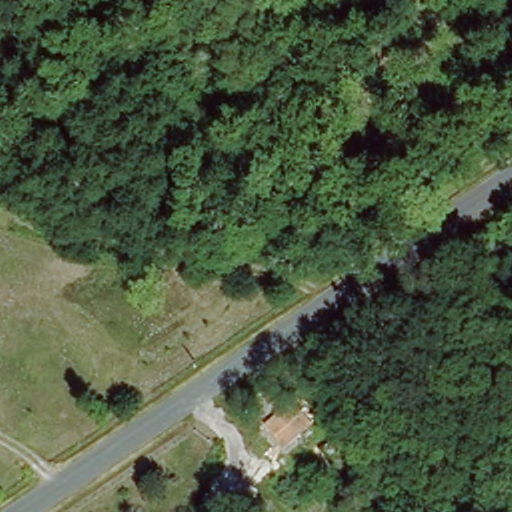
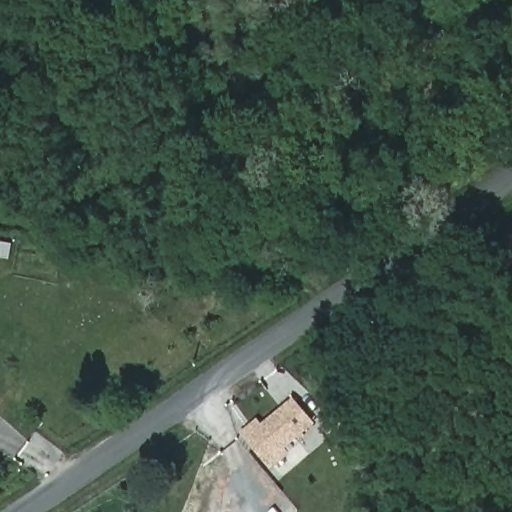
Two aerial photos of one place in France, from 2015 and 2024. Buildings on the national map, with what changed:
demolished [(293,400),(313,426),(284,448),(266,423),(293,400)]
new [(288,454),(268,468),(240,431),(256,420),(262,429),(269,425),(281,413),(292,402),(309,419),(296,431),(285,442),(281,445),(288,454)]

